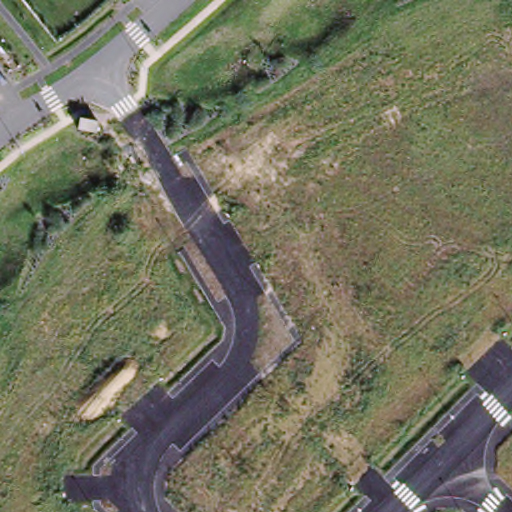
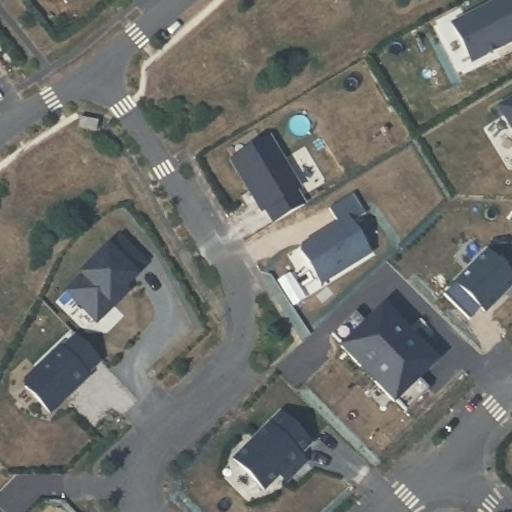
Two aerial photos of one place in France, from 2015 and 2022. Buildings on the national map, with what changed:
new [(512,46),(477,64),(457,26),(507,0),(512,0),(512,46)]
new [(512,121),(504,108),(512,103),(512,121)]
new [(273,140),(304,191),(300,194),(308,209),(278,226),(270,212),(266,215),(235,164),(273,140)]
new [(307,249),(352,219),(376,255),(349,272),(348,271),(340,276),(341,278),(327,287),(306,255),(307,249)]
new [(113,310),(97,327),(66,297),(82,281),(80,280),(107,252),(109,254),(120,242),(145,267),(133,278),(135,280),(124,291),(127,295),(113,310)]
new [(512,272),(512,294),(492,315),(488,310),(476,322),(451,297),(493,254),(512,272)]
new [(425,381),(436,392),(413,414),(402,403),(401,405),(382,385),(382,383),(375,376),(368,368),(367,370),(347,350),(350,347),(340,336),(362,315),(372,326),(390,308),(410,328),(417,336),(423,344),(443,364),(425,381)]
new [(60,351),(62,353),(76,340),(100,365),(85,379),(87,381),(50,417),(25,392),(25,385),(60,351)]
new [(285,478),(271,492),(241,463),(288,416),(317,446),(305,457),(312,465),(300,476),(292,485),(285,478)]

